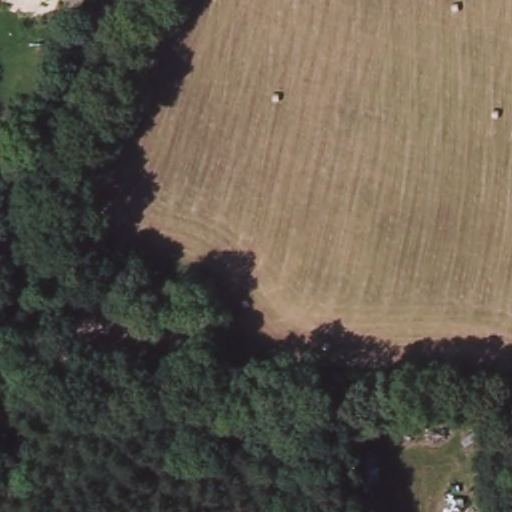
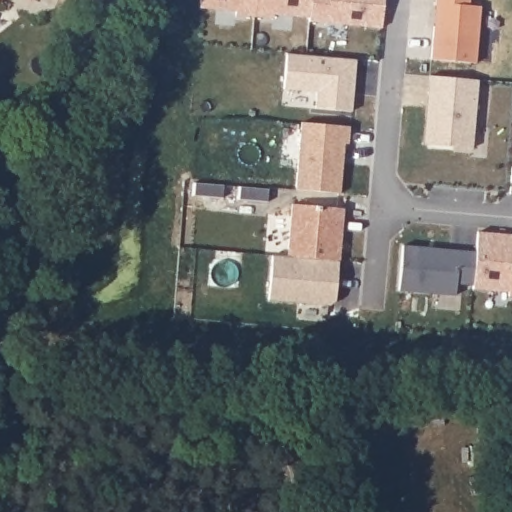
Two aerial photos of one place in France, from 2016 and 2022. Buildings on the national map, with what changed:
new [(384,0),(382,29),(308,23),(308,18),(272,15),(272,19),(236,15),(236,12),(199,9),(200,0),(384,0)]
new [(478,80),(472,149),(423,144),(428,76),(478,80)]
new [(303,124),(351,129),(349,145),(345,145),(341,195),(297,192),(303,124)]
new [(293,206),(344,210),(339,263),(289,258),(293,206)]
new [(474,287),(474,286),(476,254),(478,234),(512,236),(512,298),(509,298),(510,294),(473,290),(474,287)]
new [(403,247),(436,250),(436,253),(457,254),(458,252),(476,254),(474,286),(474,287),(457,285),(456,297),(399,292),(403,247)]
new [(273,257),(289,258),(339,263),(336,302),(331,307),(269,302),(273,257)]

